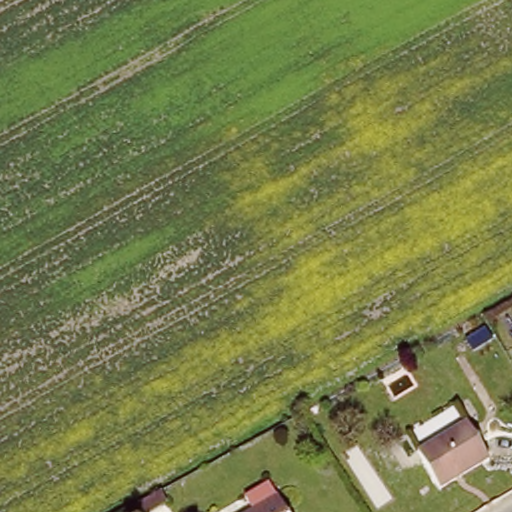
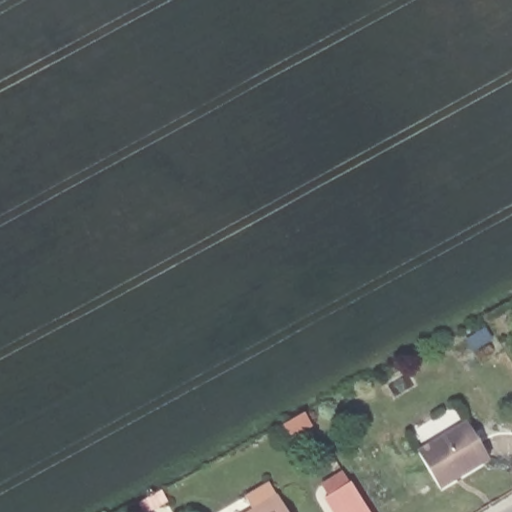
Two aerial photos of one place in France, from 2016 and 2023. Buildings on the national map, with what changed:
unchanged [(468,419),(490,458),(445,483),(440,486),(417,448),(422,445),(468,419)]
new [(350,481),(368,512),(331,512),(323,499),(328,496),(321,483),(341,470),(350,481)]
unchanged [(289,512),(245,512),(278,493),(289,512)]

